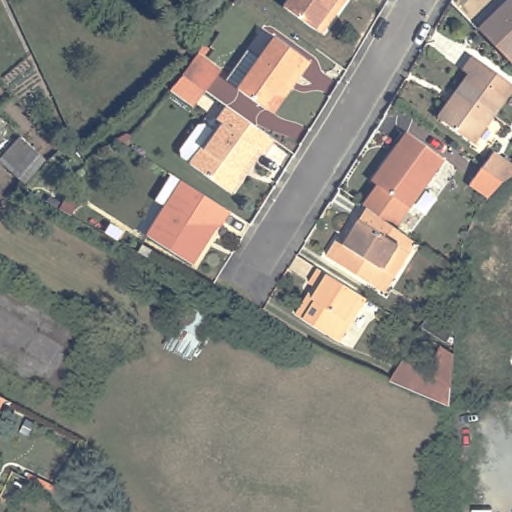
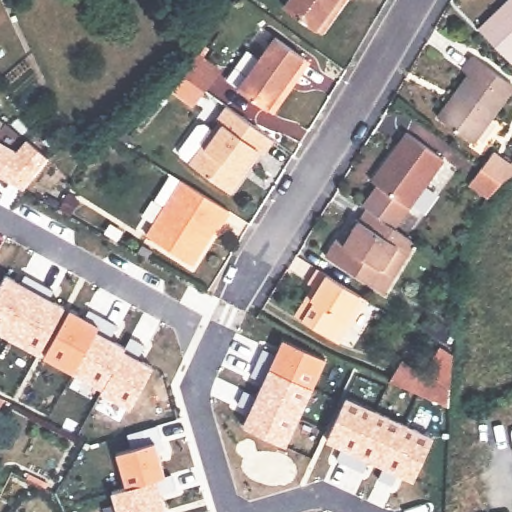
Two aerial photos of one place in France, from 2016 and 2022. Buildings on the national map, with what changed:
unchanged [(325,32),(290,6),(295,0),(348,0),(325,32)]
unchanged [(486,29),(512,5),(512,56),(486,29)]
unchanged [(271,108),(245,87),(282,37),(315,63),(306,75),(277,113),(271,108)]
unchanged [(182,93),(199,75),(212,60),(215,57),(239,75),(225,95),(209,114),(182,93)]
unchanged [(478,143),(447,118),(477,77),(472,72),(482,58),(512,81),(512,101),(478,143)]
unchanged [(282,139),(273,151),(270,148),(238,189),(197,158),(190,151),(189,145),(206,123),(212,122),(220,128),(228,117),(225,115),(235,103),(282,139)]
unchanged [(396,227),(373,209),(367,205),(383,185),(376,179),(411,133),(447,161),(396,227)]
unchanged [(22,137),(49,160),(28,183),(1,162),(22,137)]
new [(0,177),(0,142),(12,149),(1,162),(28,183),(23,190),(0,177)]
unchanged [(490,203),(487,207),(471,195),(479,183),(491,168),(503,151),(512,158),(512,183),(511,183),(502,190),(499,193),(496,196),(494,198),(490,203)]
unchanged [(226,235),(219,231),(216,236),(220,239),(201,269),(157,243),(174,214),(164,207),(177,183),(192,193),(236,219),(226,235)]
unchanged [(373,209),(396,227),(422,247),(393,292),(332,257),(343,239),(348,242),(362,220),(366,222),(373,209)]
unchanged [(320,269),(324,271),(357,292),(369,299),(343,342),(297,315),(314,287),(310,284),(320,269)]
new [(99,392),(101,389),(0,335),(0,283),(6,273),(70,309),(97,325),(95,332),(126,348),(125,351),(153,365),(131,409),(99,392)]
demolished [(194,303),(229,321),(206,368),(168,348),(194,303)]
new [(281,449),(237,429),(245,410),(234,405),(241,390),(252,394),(257,383),(246,378),(260,347),(273,353),(278,339),(323,359),(281,449)]
unchanged [(401,357),(422,369),(436,342),(451,351),(451,356),(447,402),(387,377),(401,357)]
unchanged [(0,407),(0,396),(4,398),(0,407)]
new [(411,480),(393,474),(388,486),(374,480),(380,467),(363,459),(360,470),(332,458),(338,447),(326,440),(345,398),(430,436),(411,480)]
new [(125,487),(116,451),(129,448),(126,434),(155,425),(175,489),(161,494),(166,512),(116,512),(111,491),(125,487)]
unchanged [(17,495),(10,512),(0,512),(0,499),(5,489),(17,495)]

